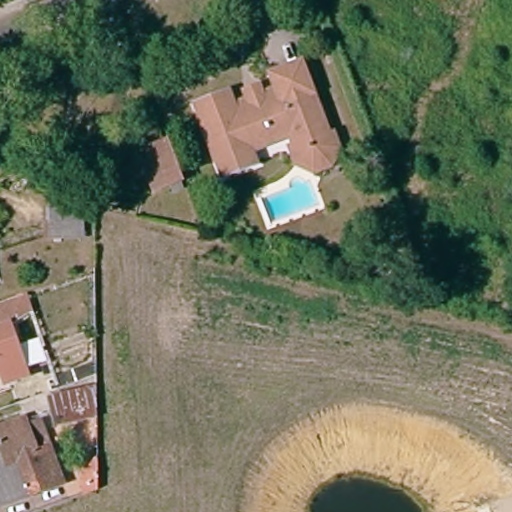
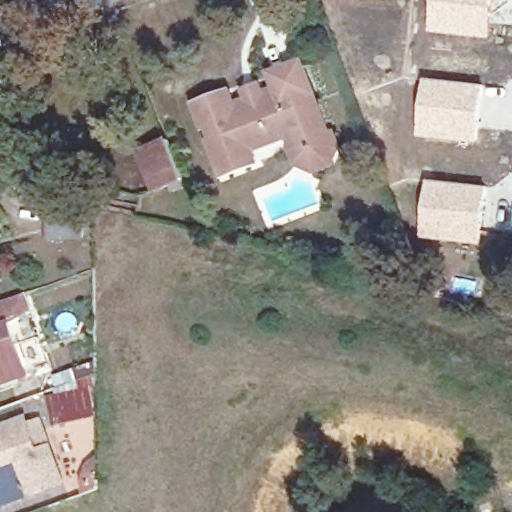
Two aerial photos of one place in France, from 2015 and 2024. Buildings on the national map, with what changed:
new [(387,1),(380,0),(387,0),(387,1)]
new [(433,0),(493,0),(488,38),(429,32),(433,0)]
unchanged [(226,172),(214,141),(221,139),(215,125),(208,128),(199,107),(234,94),(238,105),(252,100),(249,94),(246,87),(261,81),(264,88),(267,95),(282,88),(274,71),(303,60),(315,89),(331,128),(328,143),(313,149),(298,144),(293,135),(279,141),(257,150),(262,160),(226,172)]
new [(424,77),(484,85),(477,142),(418,137),(424,77)]
unchanged [(340,127),(346,142),(339,157),(313,166),(295,160),(290,145),(298,144),(313,149),(328,143),(331,128),(340,127)]
unchanged [(189,174),(183,175),(184,181),(175,185),(172,180),(155,185),(139,147),(172,135),(189,174)]
new [(428,179),(486,186),(481,245),(420,238),(428,179)]
unchanged [(52,206),(73,204),(76,220),(54,224),(52,206)]
unchanged [(13,396),(0,400),(0,328),(38,315),(44,333),(26,353),(42,397),(26,403),(16,406),(13,396)]
unchanged [(92,396),(97,416),(57,426),(52,405),(92,396)]
unchanged [(0,507),(0,506),(0,472),(3,470),(0,461),(0,428),(21,421),(37,420),(46,449),(59,486),(0,507)]

